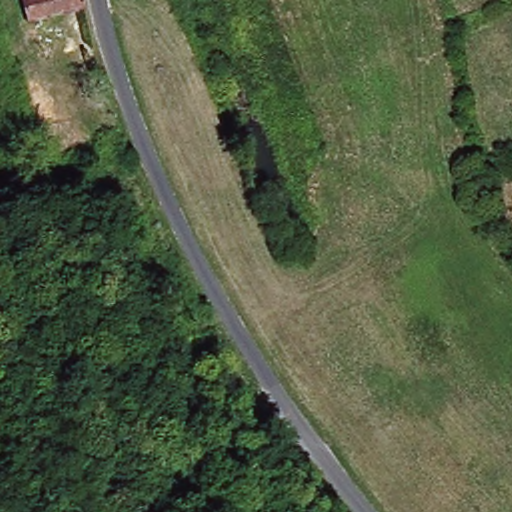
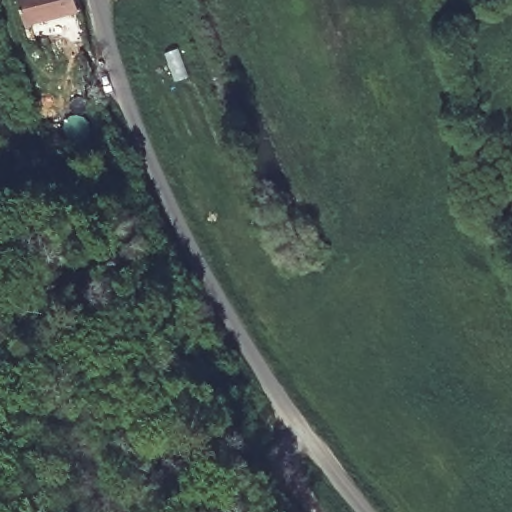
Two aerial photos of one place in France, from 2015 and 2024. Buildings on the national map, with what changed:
unchanged [(23,0),(87,0),(89,14),(26,25),(23,0)]
unchanged [(139,289),(129,276),(124,277),(112,260),(133,248),(150,280),(139,289)]

